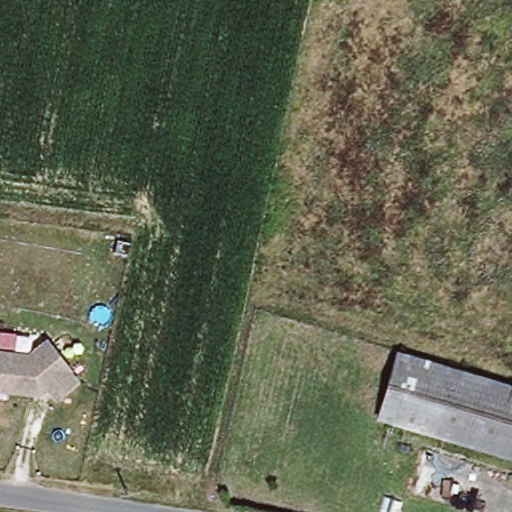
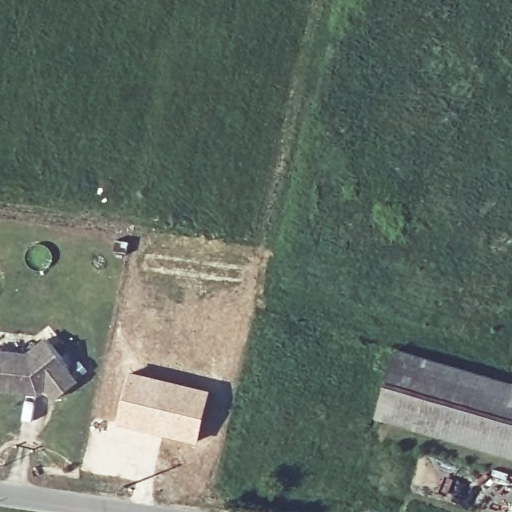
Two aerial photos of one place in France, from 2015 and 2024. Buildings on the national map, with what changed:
unchanged [(26,357),(46,342),(69,372),(66,373),(75,385),(54,402),(45,390),(41,393),(29,392),(29,396),(0,392),(0,355),(26,357)]
unchanged [(396,355),(512,388),(512,458),(377,417),(396,355)]
new [(130,370),(212,388),(200,442),(116,423),(130,370)]

